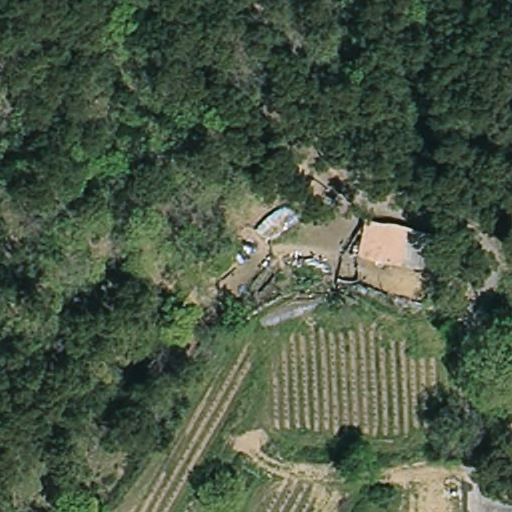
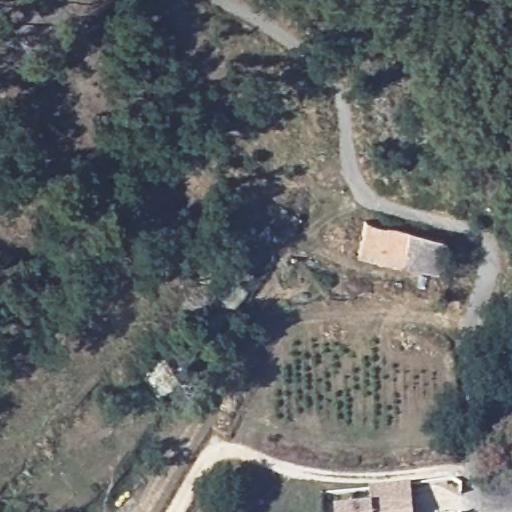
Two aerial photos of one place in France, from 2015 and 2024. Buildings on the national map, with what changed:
unchanged [(366,221),(379,225),(380,225),(385,226),(392,226),(402,228),(415,232),(446,240),(440,271),(383,263),(359,257),(366,221)]
new [(371,506),(369,487),(409,483),(412,512),(334,512),(334,510),(371,506)]

